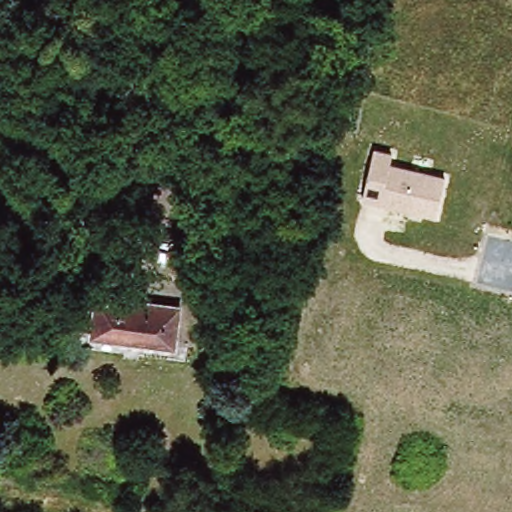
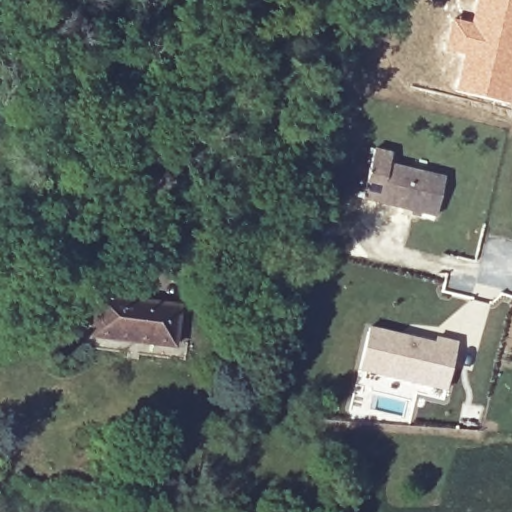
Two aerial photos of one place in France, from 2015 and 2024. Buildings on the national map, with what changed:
new [(470,22),(475,0),(512,0),(512,93),(510,104),(454,89),(462,55),(443,50),(451,18),(470,22)]
unchanged [(358,200),(372,146),(393,151),(391,164),(443,177),(433,218),(358,200)]
unchanged [(172,270),(178,252),(192,256),(197,237),(220,244),(207,281),(172,270)]
unchanged [(92,336),(97,298),(177,308),(172,346),(92,336)]
new [(367,328),(433,344),(434,339),(456,344),(445,390),(357,370),(367,328)]

